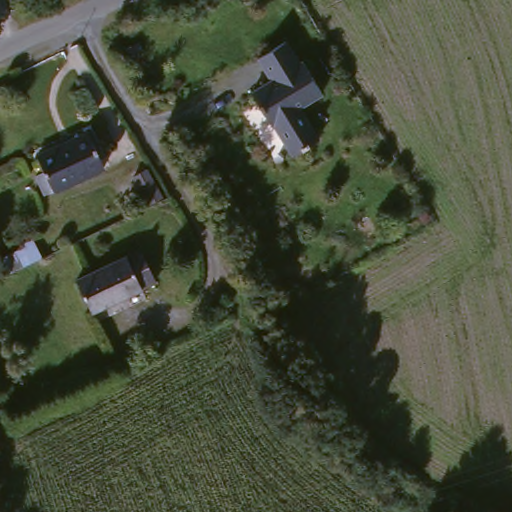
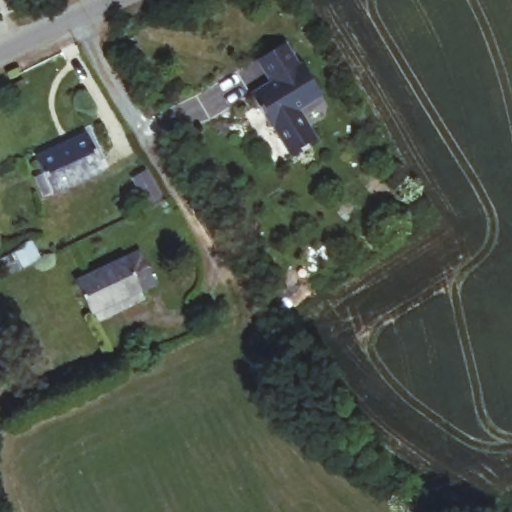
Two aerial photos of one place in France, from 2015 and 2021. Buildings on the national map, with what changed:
unchanged [(279,44),(293,67),(296,65),(316,97),(293,111),(313,144),(287,159),(268,127),(265,129),(246,96),(266,84),(252,61),(279,44)]
unchanged [(48,166),(41,149),(87,124),(104,157),(45,190),(36,174),(48,166)]
unchanged [(132,193),(149,184),(164,213),(147,219),(132,193)]
unchanged [(39,262),(13,275),(1,254),(28,242),(39,262)]
unchanged [(86,273),(133,249),(150,279),(103,303),(86,273)]

